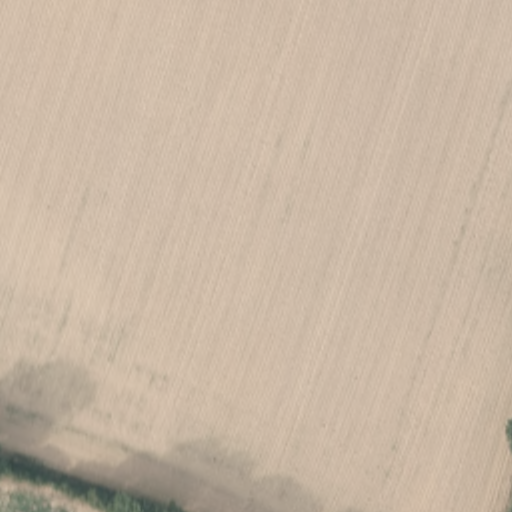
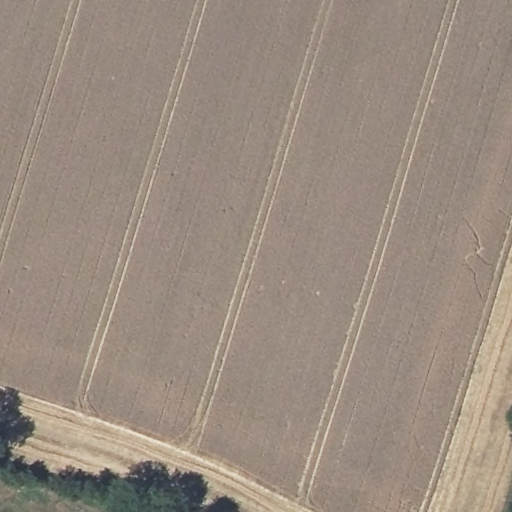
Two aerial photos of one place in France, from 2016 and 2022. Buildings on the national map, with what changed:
[]

